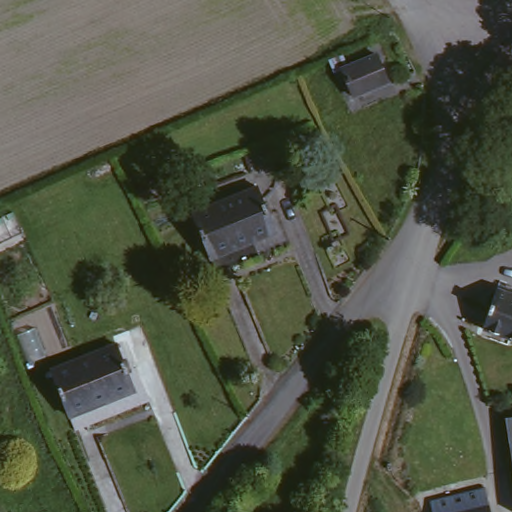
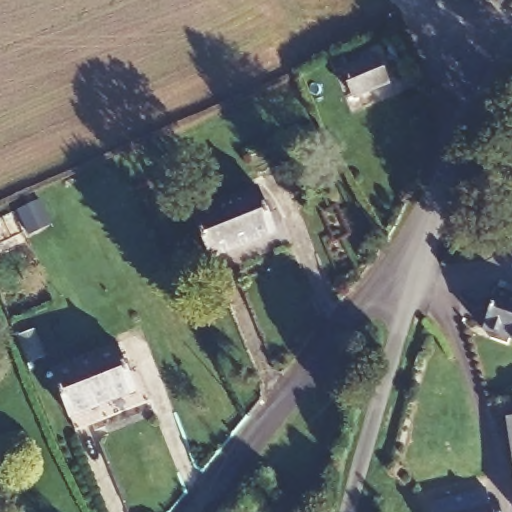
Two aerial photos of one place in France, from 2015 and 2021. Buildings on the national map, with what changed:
unchanged [(391,85),(358,101),(342,70),(334,75),(328,64),(343,57),(348,67),(375,53),(391,85)]
unchanged [(251,189),(260,214),(273,210),(283,240),(210,270),(189,211),(251,189)]
unchanged [(483,335),(498,291),(512,296),(512,344),(483,335)]
unchanged [(110,338),(120,365),(131,361),(144,395),(69,423),(46,362),(110,338)]
unchanged [(500,417),(512,416),(512,482),(500,417)]
unchanged [(424,510),(478,494),(482,512),(425,512),(424,510)]

